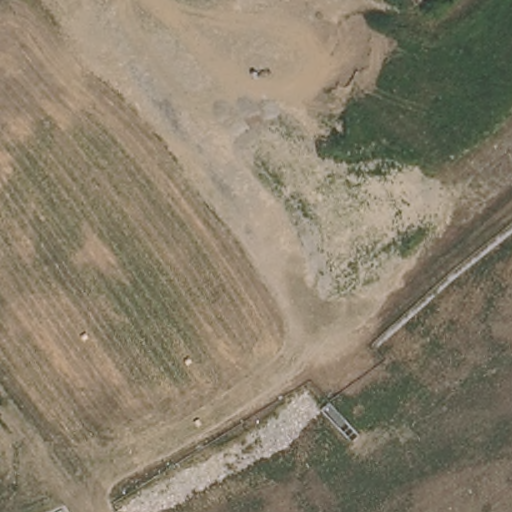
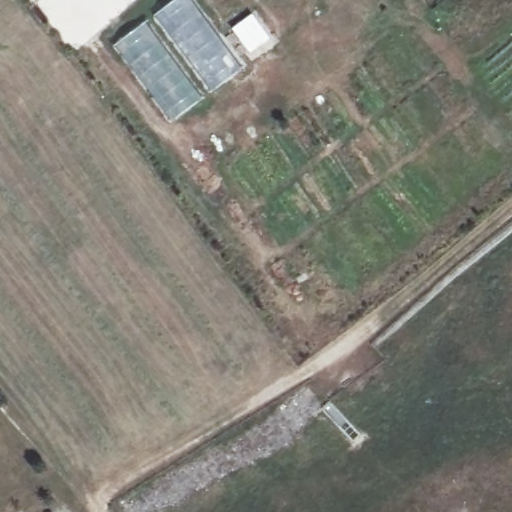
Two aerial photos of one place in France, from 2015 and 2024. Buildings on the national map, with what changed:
new [(173,0),(194,0),(243,67),(210,92),(153,14),(173,0)]
new [(252,11),(271,37),(250,53),(230,27),(252,11)]
new [(145,21),(203,98),(170,122),(112,45),(145,21)]

